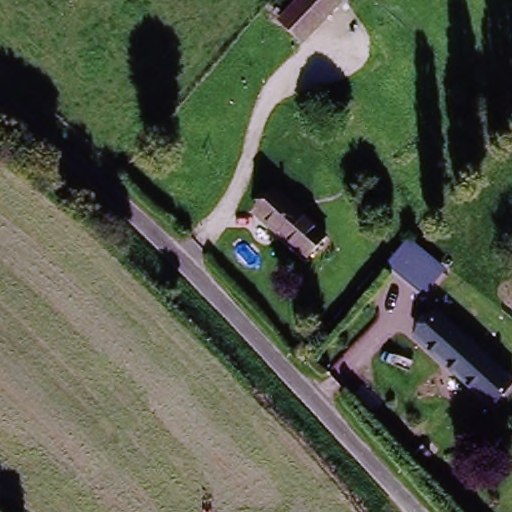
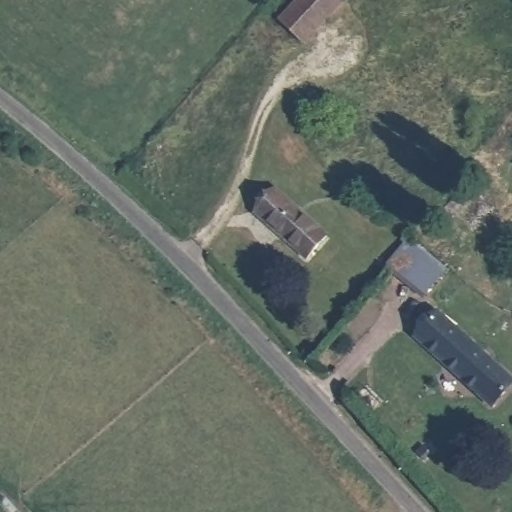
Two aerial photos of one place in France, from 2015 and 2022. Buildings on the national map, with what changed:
unchanged [(284,24),(307,0),(337,0),(341,4),(304,42),(284,24)]
unchanged [(331,234),(313,257),(256,213),(274,189),(331,234)]
unchanged [(420,295),(387,266),(405,245),(439,273),(420,295)]
unchanged [(512,374),(512,389),(502,400),(442,347),(459,327),(512,374)]

